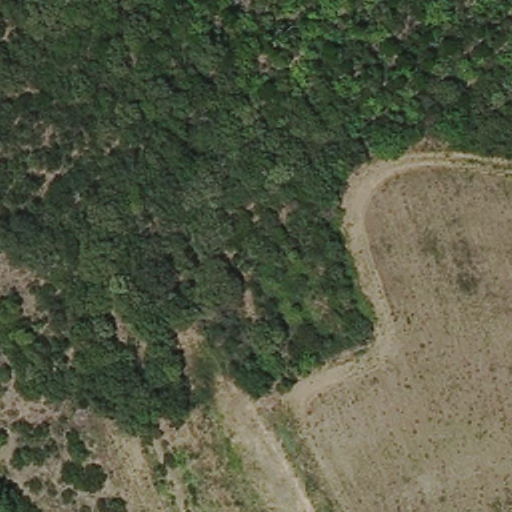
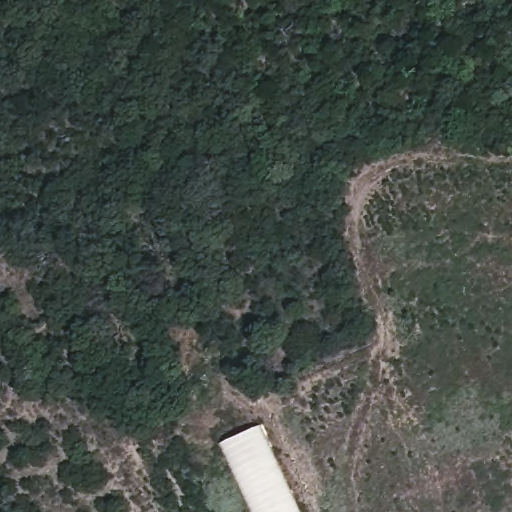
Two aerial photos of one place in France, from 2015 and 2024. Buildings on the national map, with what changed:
new [(222,445),(259,428),(298,512),(253,512),(222,445)]

